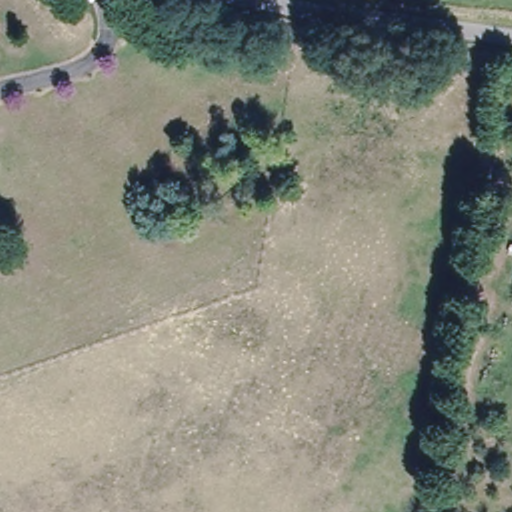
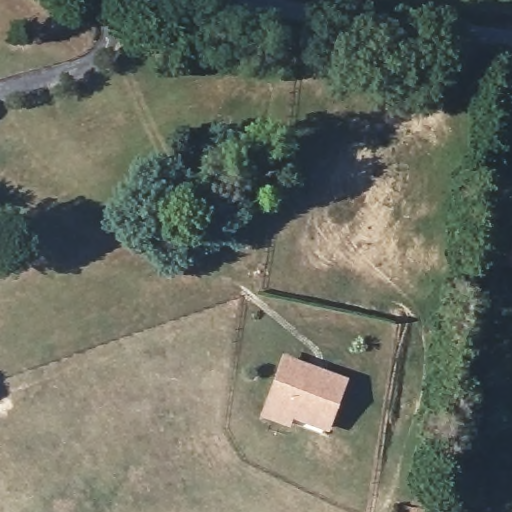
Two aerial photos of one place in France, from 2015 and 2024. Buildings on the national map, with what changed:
unchanged [(512,246),(512,268),(503,265),(512,246)]
new [(350,379),(330,434),(292,421),(290,428),(260,418),(283,354),(350,379)]

